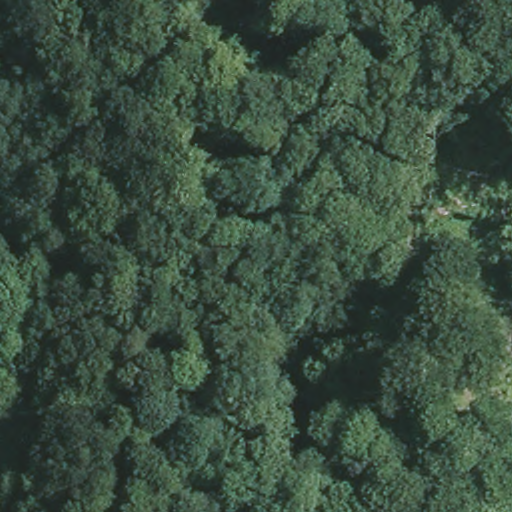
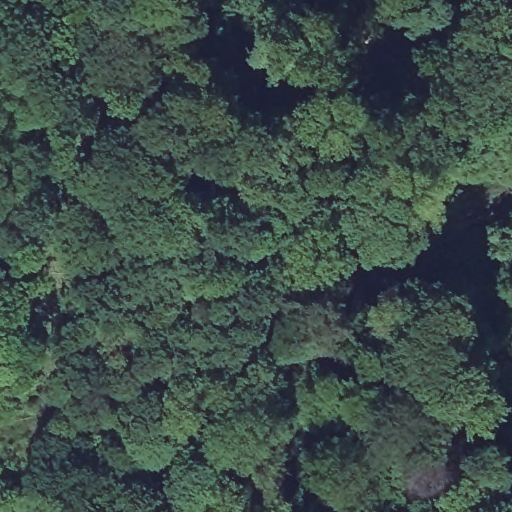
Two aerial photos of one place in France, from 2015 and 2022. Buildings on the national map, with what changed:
unchanged [(6,374),(10,389),(4,415),(0,423),(0,367),(6,374)]

